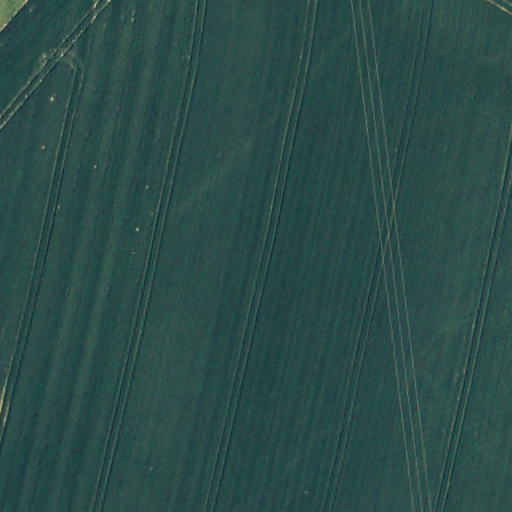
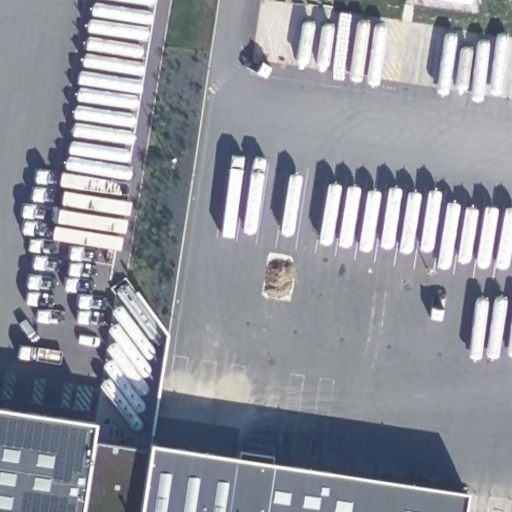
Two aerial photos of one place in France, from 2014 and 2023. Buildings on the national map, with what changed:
new [(86,439),(467,499),(466,512),(0,512),(0,413),(89,427),(86,439)]

